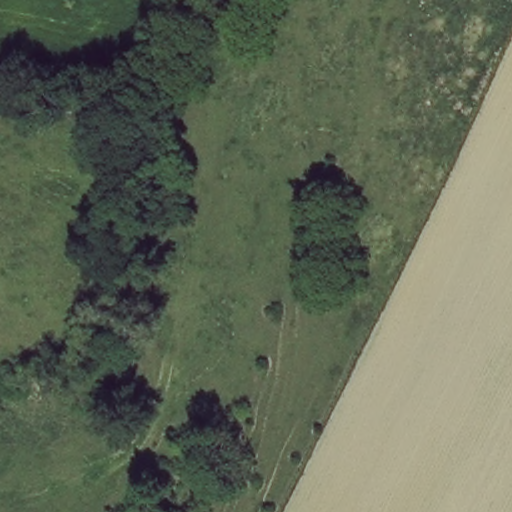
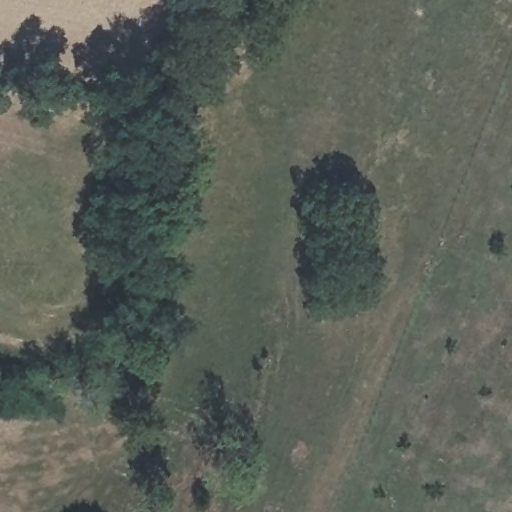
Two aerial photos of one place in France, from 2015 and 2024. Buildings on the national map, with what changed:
[]

